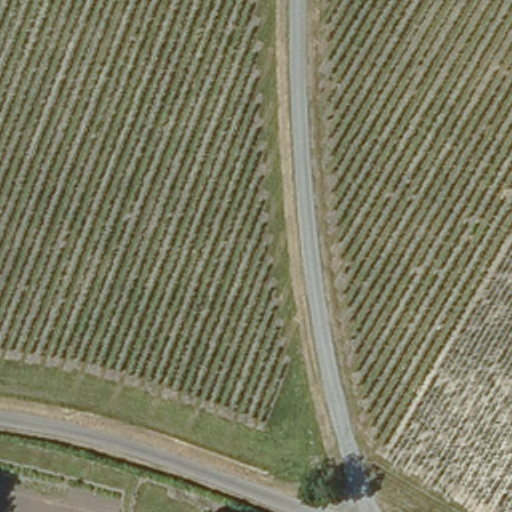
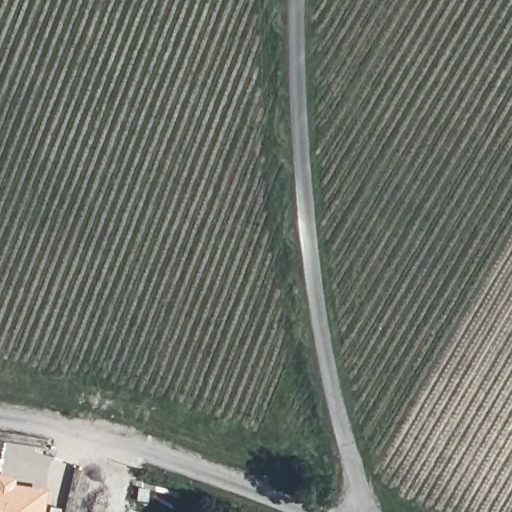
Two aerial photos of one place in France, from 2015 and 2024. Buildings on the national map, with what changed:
new [(0,475),(18,477),(16,486),(49,490),(46,512),(0,512),(0,475)]

